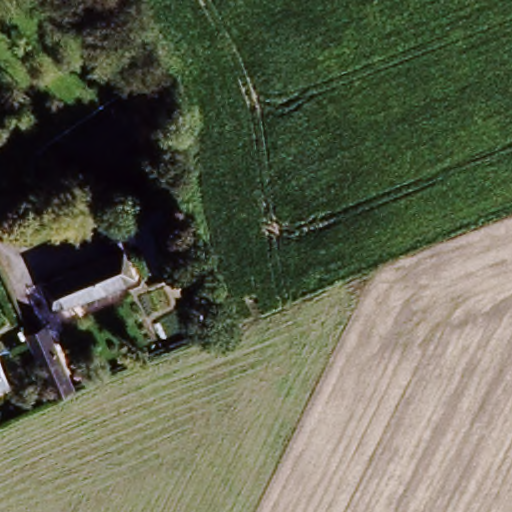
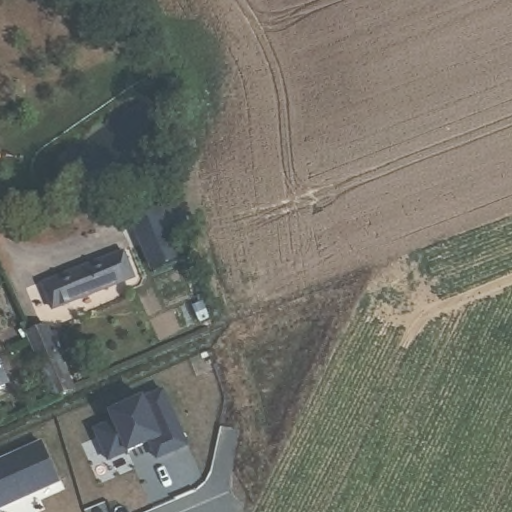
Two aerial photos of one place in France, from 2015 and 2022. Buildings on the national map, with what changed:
new [(177,259),(149,271),(130,224),(159,212),(177,259)]
unchanged [(120,250),(132,274),(50,308),(40,281),(120,250)]
unchanged [(48,326),(75,388),(56,397),(28,334),(48,326)]
unchanged [(0,382),(0,354),(10,378),(0,382)]
new [(114,422),(109,412),(142,397),(142,399),(162,391),(186,445),(157,458),(150,442),(107,458),(95,430),(114,422)]
new [(40,441),(59,482),(0,509),(0,459),(40,441)]

